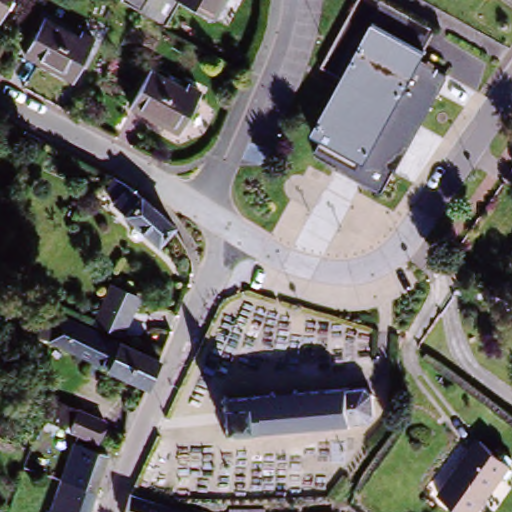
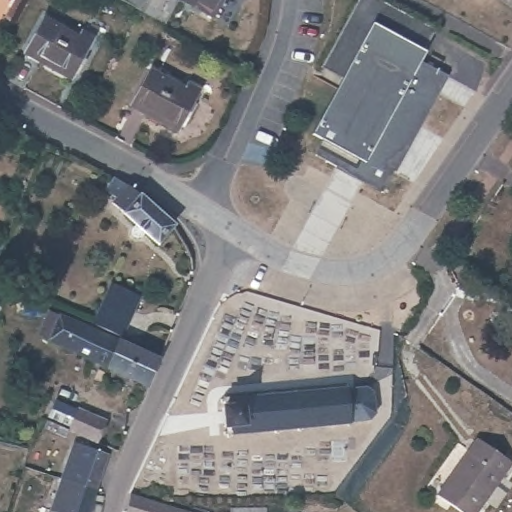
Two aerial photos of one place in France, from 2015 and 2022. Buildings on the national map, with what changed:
unchanged [(0,0),(7,0),(0,12),(0,0)]
unchanged [(111,0),(182,0),(180,4),(165,30),(131,12),(110,1),(111,0)]
unchanged [(180,4),(182,0),(232,0),(218,25),(180,4)]
unchanged [(377,0),(436,33),(427,50),(377,24),(344,79),(324,66),(362,0),(377,0)]
unchanged [(26,55),(45,22),(74,39),(81,32),(93,38),(69,79),(26,55)]
unchanged [(445,78),(377,195),(312,157),(320,140),(310,135),(344,79),(377,24),(427,50),(421,62),(445,78)]
unchanged [(131,110),(149,79),(186,98),(191,91),(204,99),(183,137),(131,110)]
unchanged [(177,227),(159,245),(111,206),(128,189),(177,227)]
unchanged [(59,314),(46,309),(51,295),(91,314),(108,279),(143,296),(124,343),(160,361),(145,396),(107,374),(109,369),(48,337),(59,314)]
unchanged [(215,444),(213,405),(364,394),(364,433),(215,444)]
unchanged [(105,421),(101,439),(44,423),(51,403),(105,421)]
unchanged [(471,512),(456,512),(434,495),(452,472),(461,468),(481,444),(511,468),(471,512)]
unchanged [(109,455),(91,512),(50,512),(75,445),(109,455)]
unchanged [(132,494),(169,512),(125,512),(132,494)]

